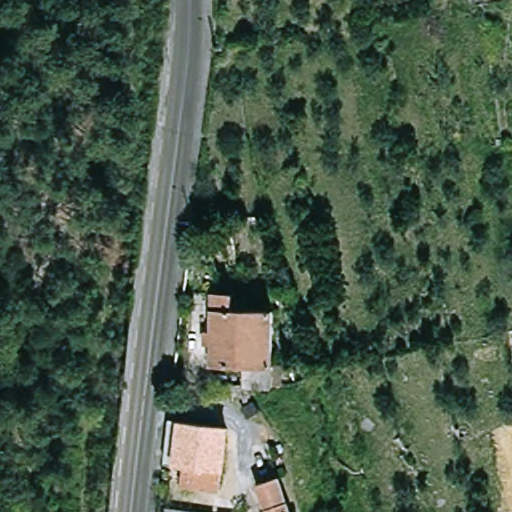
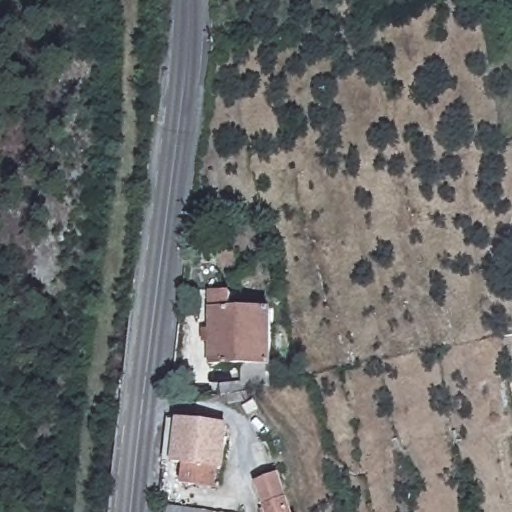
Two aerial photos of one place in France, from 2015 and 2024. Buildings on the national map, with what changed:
unchanged [(275,387),(249,387),(249,367),(216,367),(217,295),(236,296),(236,312),(276,312),(275,387)]
unchanged [(226,488),(197,485),(197,482),(190,481),(191,472),(180,470),(186,427),(233,432),(226,488)]
unchanged [(261,482),(281,476),(292,512),(266,512),(258,488),(256,483),(261,482)]
unchanged [(165,508),(200,512),(164,512),(165,508)]

